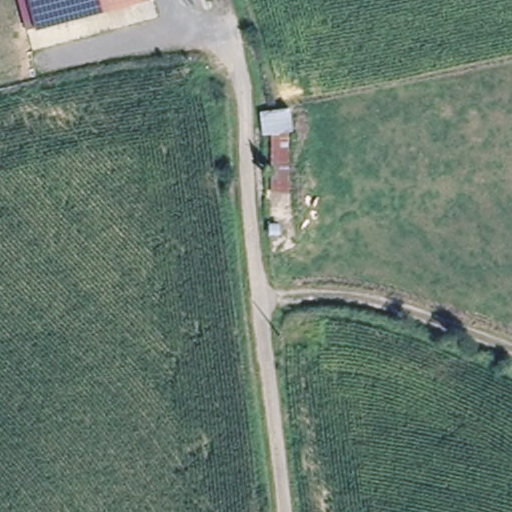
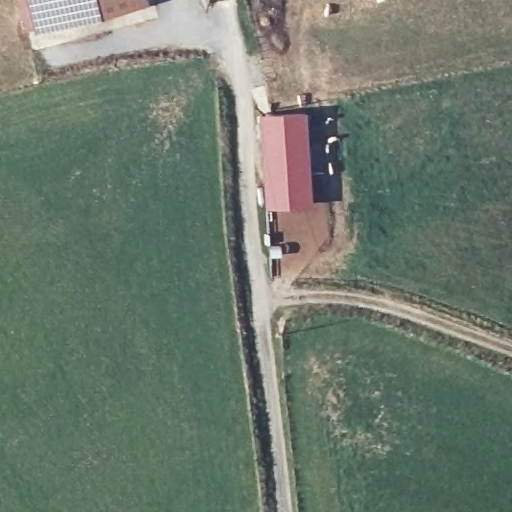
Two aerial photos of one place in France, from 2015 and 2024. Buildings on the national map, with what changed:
new [(37,30),(29,0),(149,0),(37,30)]
new [(313,204),(266,208),(260,113),(308,110),(313,204)]
demolished [(276,171),(269,128),(288,125),(296,170),(276,171)]

